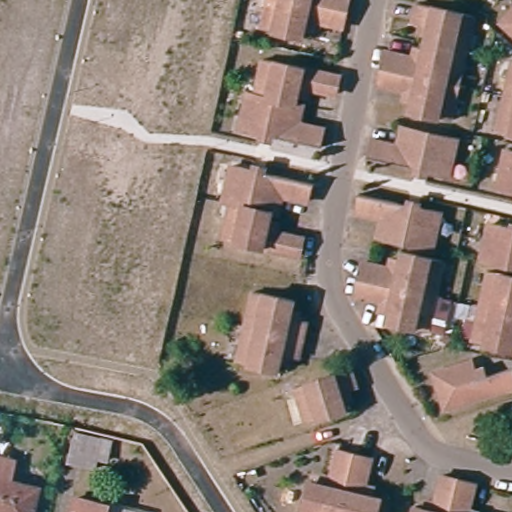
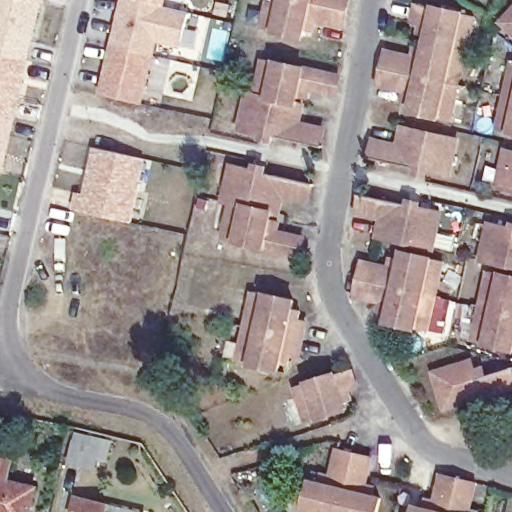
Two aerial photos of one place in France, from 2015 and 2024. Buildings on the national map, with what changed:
new [(1,174),(0,174),(0,0),(43,0),(28,62),(1,174)]
new [(167,0),(165,5),(188,12),(179,50),(158,44),(143,104),(97,92),(119,0),(167,0)]
unchanged [(349,22),(313,12),(310,32),(268,22),(273,0),(353,0),(352,5),(349,22)]
unchanged [(452,120),(412,111),(416,92),(380,85),(389,49),(408,54),(411,35),(415,18),(396,16),(398,0),(412,0),(476,15),(452,120)]
unchanged [(512,9),(512,20),(506,15),(512,9)]
unchanged [(343,95),(307,86),(303,103),(303,104),(310,104),(307,123),(329,128),(325,147),(245,127),(252,92),(260,94),(267,58),(347,77),(343,95)]
unchanged [(509,92),(512,79),(512,127),(502,124),(509,92)]
unchanged [(458,140),(449,174),(371,157),(376,139),(401,144),(403,127),(458,140)]
new [(72,208),(75,192),(83,194),(93,147),(146,159),(131,225),(72,208)]
unchanged [(512,190),(494,186),(502,151),(512,153),(512,190)]
unchanged [(308,196),(284,190),(279,207),(272,206),(269,223),(305,232),(301,251),(223,232),(231,197),(232,196),(223,195),(232,160),(311,179),(308,196)]
unchanged [(436,207),(428,242),(374,230),(378,212),(355,206),(359,190),(436,207)]
unchanged [(512,264),(488,258),(494,224),(512,228),(512,264)]
unchanged [(395,263),(399,246),(440,256),(424,326),(383,315),(387,298),(351,289),(360,256),(395,263)]
unchanged [(512,348),(479,341),(494,271),(512,274),(512,348)]
unchanged [(295,301),(292,317),(308,321),(305,337),(301,355),(285,351),(281,370),(238,360),(253,291),(295,301)]
unchanged [(477,372),(512,362),(512,381),(446,402),(434,367),(472,355),(477,372)]
unchanged [(357,380),(342,385),(348,402),(307,414),(298,380),(354,364),(357,380)]
demolished [(104,430),(99,458),(85,457),(90,427),(104,430)]
new [(98,460),(95,467),(68,462),(74,432),(114,440),(108,461),(98,460)]
unchanged [(358,453),(373,457),(365,492),(381,497),(378,512),(306,512),(314,480),(332,485),(341,449),(358,453)]
unchanged [(32,512),(0,512),(0,467),(13,470),(11,480),(37,486),(32,512)]
unchanged [(462,479),(477,483),(469,512),(415,512),(416,506),(436,511),(445,475),(462,479)]
unchanged [(107,496),(105,512),(84,512),(85,507),(76,505),(79,490),(107,496)]

